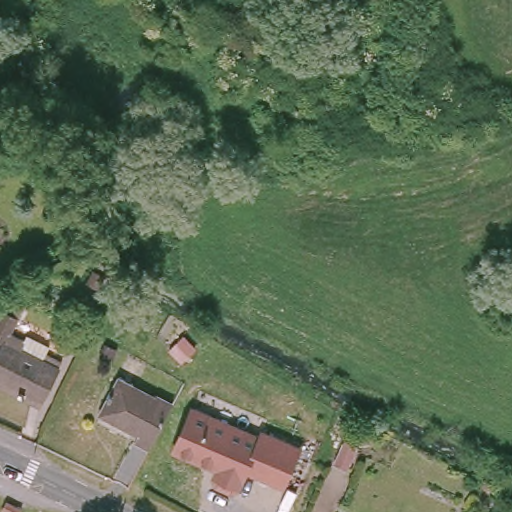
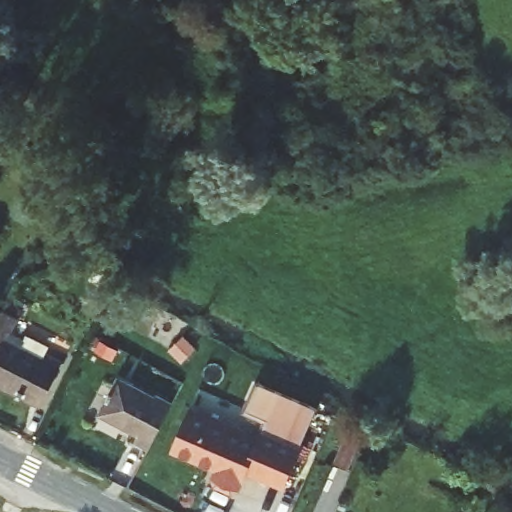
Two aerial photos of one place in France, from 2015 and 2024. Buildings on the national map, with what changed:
unchanged [(8,303),(21,311),(18,316),(10,332),(24,340),(28,332),(49,343),(45,352),(62,361),(39,407),(0,386),(0,350),(2,347),(0,346),(0,318),(5,309),(8,303)]
unchanged [(149,447),(134,439),(139,430),(102,411),(120,376),(172,403),(149,447)]
new [(267,417),(247,410),(260,382),(315,407),(300,446),(262,429),(267,417)]
unchanged [(247,430),(260,435),(262,429),(300,446),(285,483),(247,467),(239,486),(232,488),(216,482),(214,475),(219,463),(199,454),(197,457),(174,447),(192,405),(247,430)]

